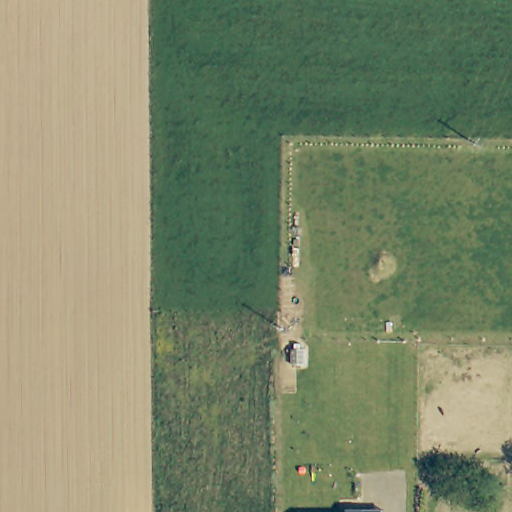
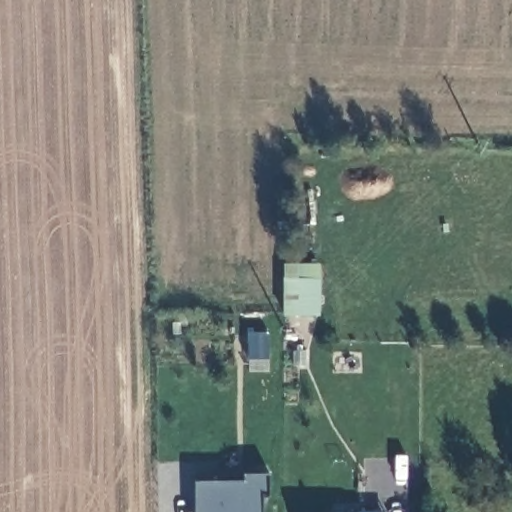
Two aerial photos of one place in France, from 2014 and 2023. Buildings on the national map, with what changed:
new [(266,327),(266,353),(246,354),(246,328),(266,327)]
new [(193,480),(241,478),(242,472),(267,471),(267,492),(260,492),(260,512),(193,512),(193,480)]
unchanged [(386,512),(348,512),(347,510),(386,511),(386,512)]

